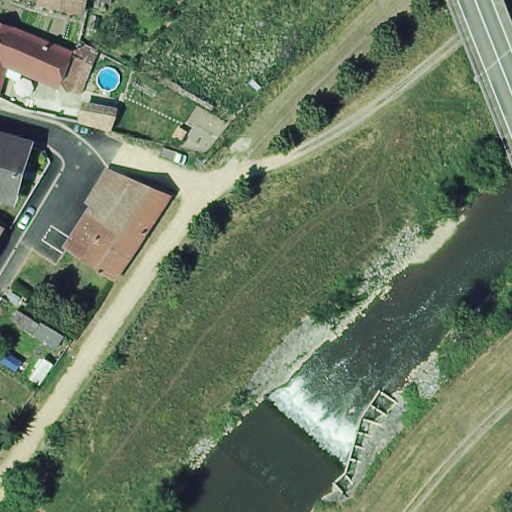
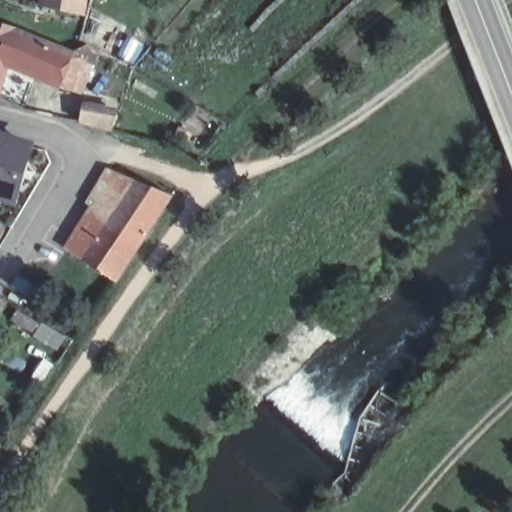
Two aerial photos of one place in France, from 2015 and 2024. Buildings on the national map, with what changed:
unchanged [(78,20),(37,11),(39,0),(82,0),(78,20)]
unchanged [(17,76),(20,71),(5,66),(0,82),(0,30),(14,34),(14,37),(30,44),(67,58),(70,56),(82,49),(87,52),(82,66),(70,96),(55,90),(17,76)]
unchanged [(77,105),(117,112),(110,125),(76,117),(77,105)]
unchanged [(0,143),(12,145),(22,147),(22,149),(7,200),(0,198),(0,143)]
unchanged [(85,206),(107,176),(112,178),(129,185),(167,201),(147,231),(110,286),(78,265),(62,254),(90,209),(85,206)]
unchanged [(0,446),(2,447),(0,449),(0,446)]

